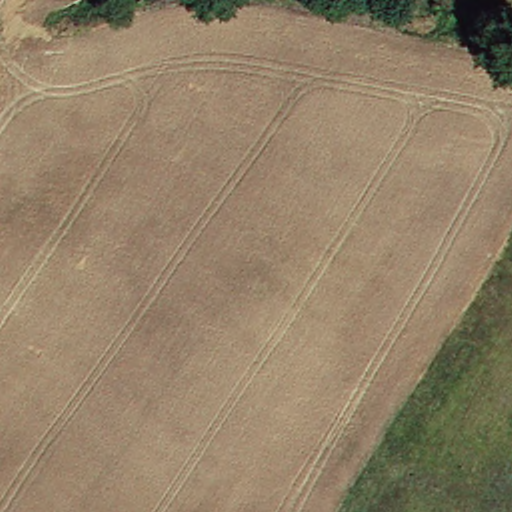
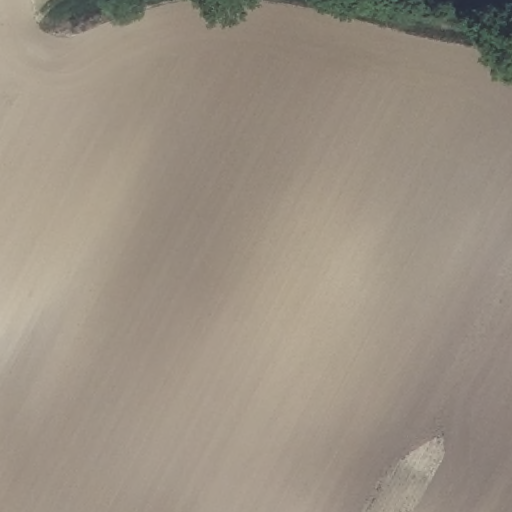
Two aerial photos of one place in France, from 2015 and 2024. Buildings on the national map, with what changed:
[]

